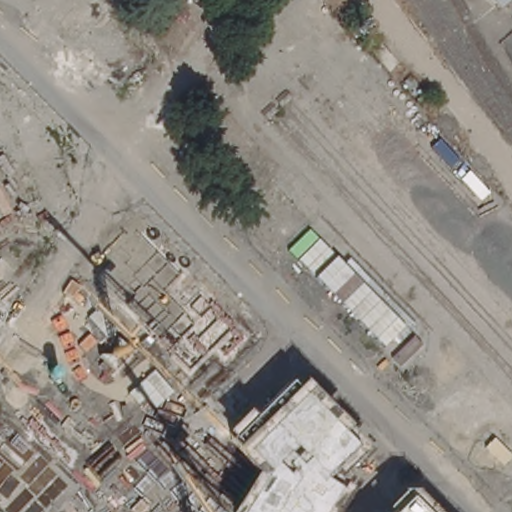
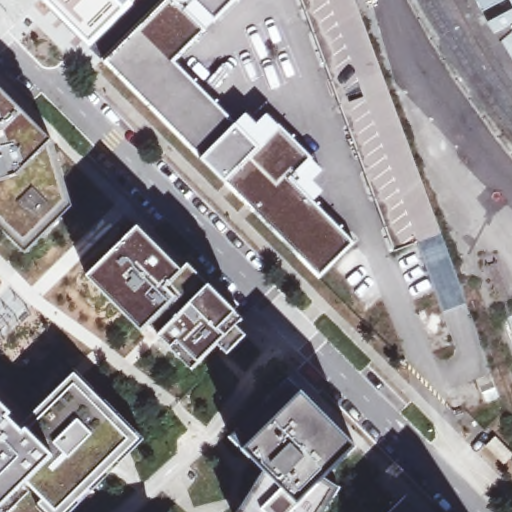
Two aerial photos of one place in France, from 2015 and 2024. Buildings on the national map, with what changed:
new [(122,25),(92,50),(40,0),(144,0),(122,25)]
new [(235,125),(245,115),(255,125),(267,115),(280,130),(311,160),(321,172),(312,181),(322,193),(314,202),(355,245),(319,280),(224,184),(200,161),(105,64),(169,0),(238,0),(215,22),(205,32),(175,62),(235,125)]
new [(441,235),(392,252),(299,0),(354,0),(441,235)]
unchanged [(507,9),(499,0),(512,0),(512,5),(507,9)]
new [(15,179),(0,182),(0,89),(52,144),(15,179)]
new [(52,144),(72,206),(25,253),(0,227),(0,182),(15,179),(52,144)]
new [(226,355),(217,345),(199,363),(192,370),(171,348),(159,337),(149,325),(142,332),(88,278),(139,228),(181,273),(187,266),(209,287),(235,315),(241,320),(235,326),(245,336),(226,355)]
new [(29,430),(24,432),(19,428),(74,375),(139,440),(66,512),(46,512),(39,505),(45,499),(28,482),(54,457),(29,430)]
new [(244,451),(229,437),(288,379),(303,394),(244,451)]
new [(303,394),(355,447),(324,480),(297,505),(264,472),(244,451),(303,394)]
new [(0,510),(0,402),(13,415),(10,418),(19,428),(24,432),(29,430),(54,457),(28,482),(0,510)]
new [(324,480),(337,487),(322,512),(239,512),(264,472),(297,505),(324,480)]
new [(45,499),(39,505),(46,512),(0,512),(0,510),(28,482),(45,499)]
new [(419,512),(391,512),(404,498),(419,512)]

